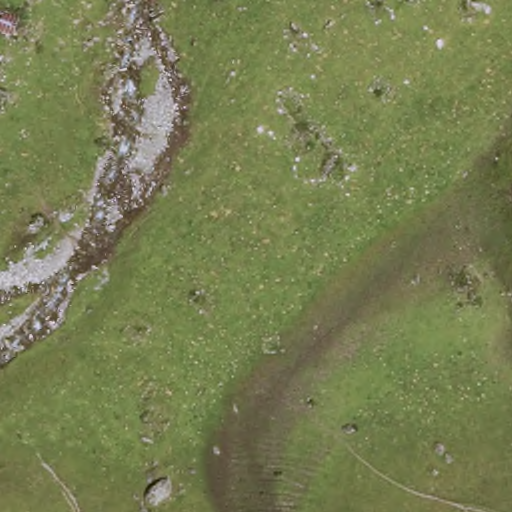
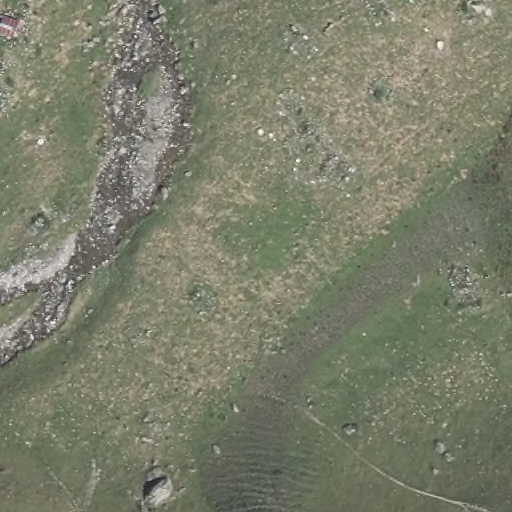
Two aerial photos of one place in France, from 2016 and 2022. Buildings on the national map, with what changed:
unchanged [(15,38),(0,33),(0,30),(4,16),(17,22),(15,38)]

